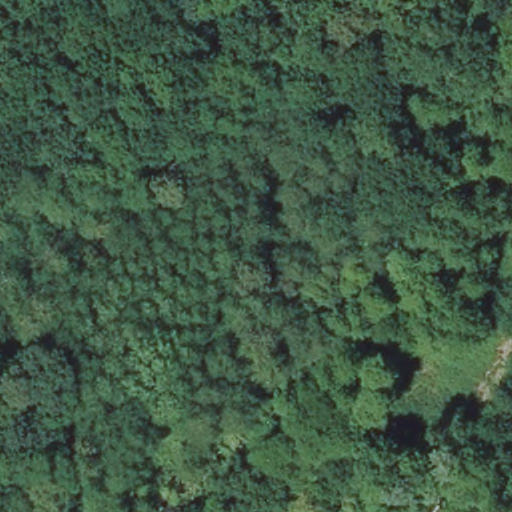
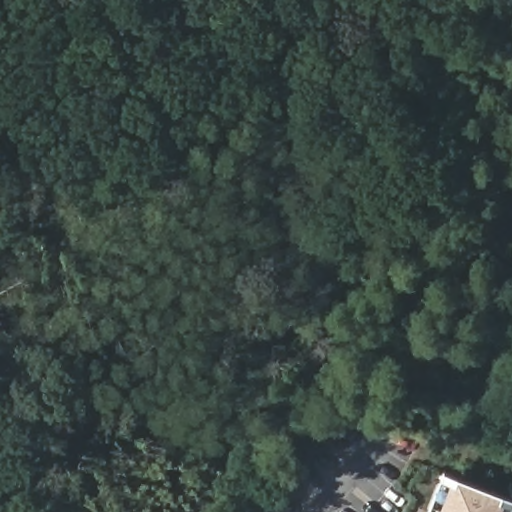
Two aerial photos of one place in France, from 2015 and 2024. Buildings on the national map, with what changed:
unchanged [(35,209),(246,80),(260,103),(248,111),(245,106),(46,226),(35,209)]
unchanged [(52,426),(48,417),(89,403),(98,400),(101,409),(88,414),(52,426)]
new [(443,471),(456,476),(503,494),(512,498),(512,510),(511,512),(428,512),(440,479),(443,471)]

